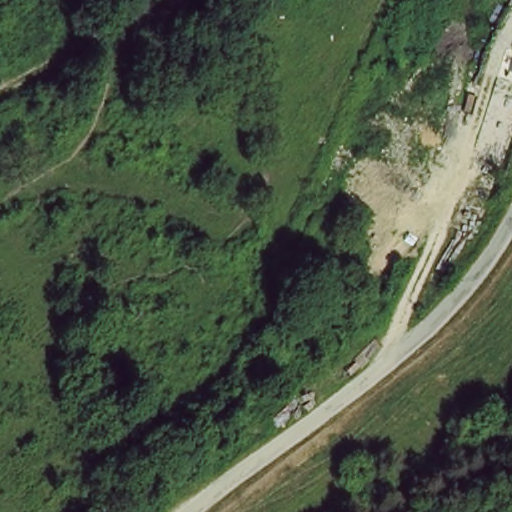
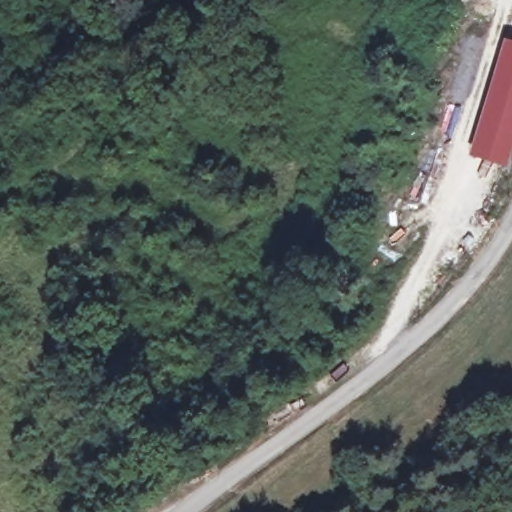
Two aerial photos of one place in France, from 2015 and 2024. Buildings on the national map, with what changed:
new [(512,41),(512,149),(506,168),(469,156),(503,38),(512,41)]

